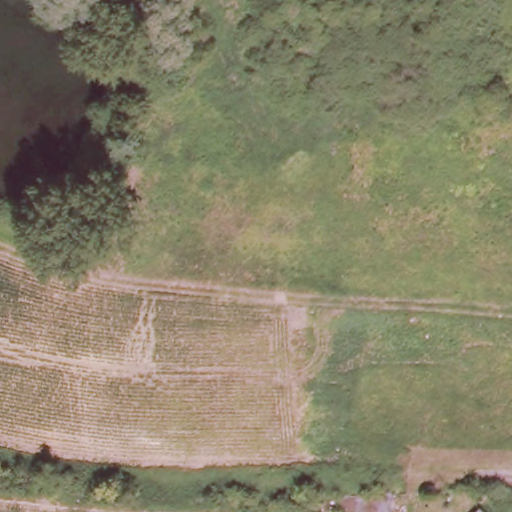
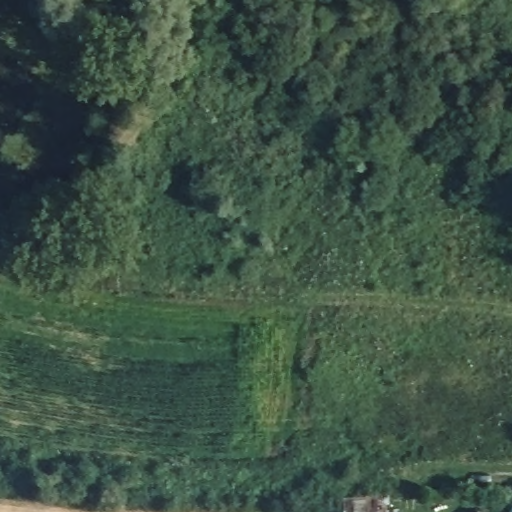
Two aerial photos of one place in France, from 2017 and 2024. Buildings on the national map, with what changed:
unchanged [(477,512),(471,512),(474,509),(477,512)]

